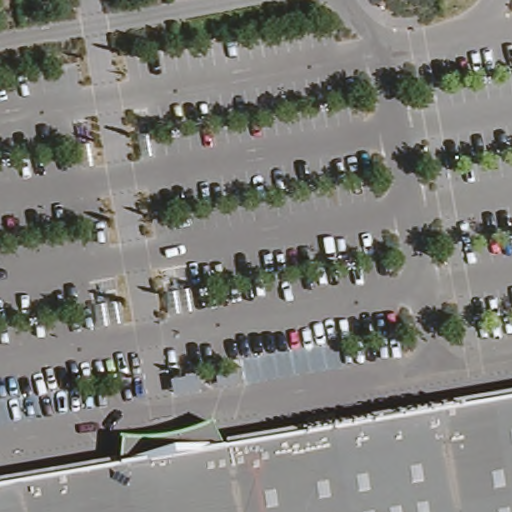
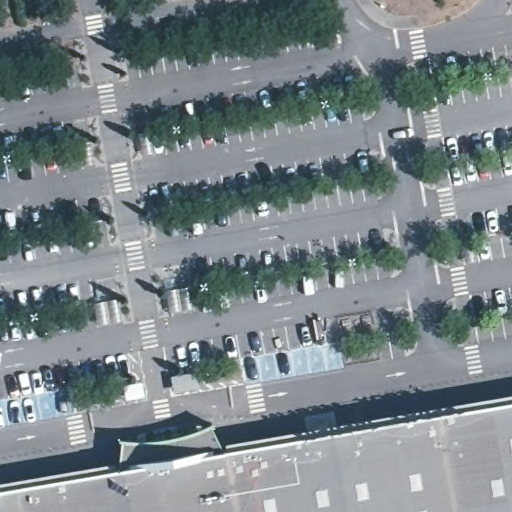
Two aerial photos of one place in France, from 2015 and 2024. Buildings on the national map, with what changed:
unchanged [(0,483),(512,398),(512,512),(0,512),(0,483)]

